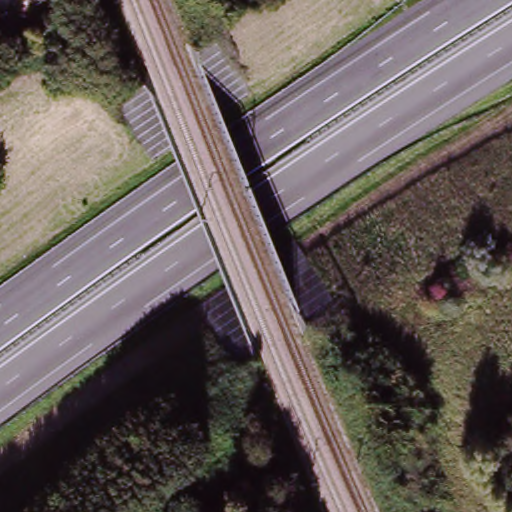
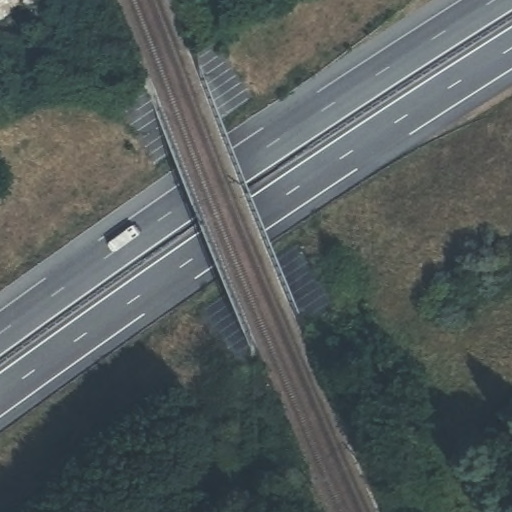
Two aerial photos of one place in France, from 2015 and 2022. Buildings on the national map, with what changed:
[]

